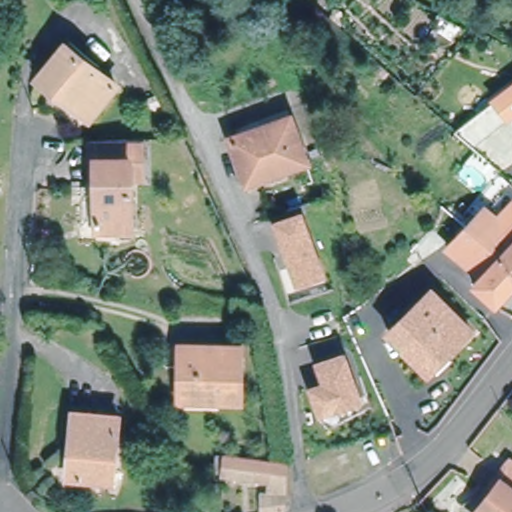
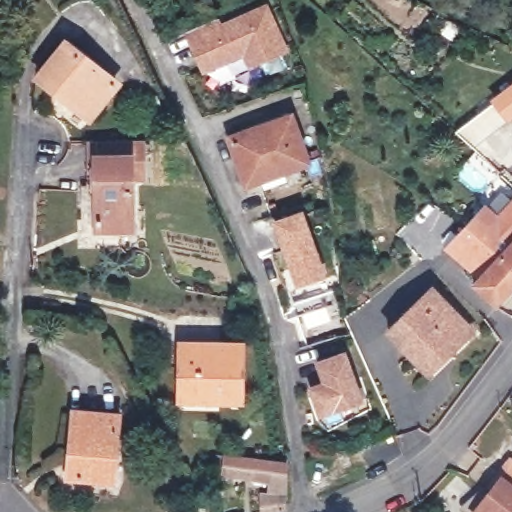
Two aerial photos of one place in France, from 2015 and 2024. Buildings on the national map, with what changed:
new [(215,21),(219,31),(265,10),(284,52),(251,68),(245,55),(214,69),(206,52),(196,57),(185,35),(215,21)]
unchanged [(40,77),(67,45),(116,84),(89,117),(40,77)]
unchanged [(492,99),(512,83),(512,110),(505,115),(492,99)]
unchanged [(239,156),(234,139),(290,120),(306,162),(254,180),(247,182),(239,156)]
unchanged [(96,222),(95,180),(89,180),(89,142),(141,139),(141,178),(131,178),(132,232),(120,231),(96,231),(96,222)]
unchanged [(308,242),(318,275),(294,283),(283,250),(275,222),(300,214),(308,242)]
unchanged [(491,311),(470,291),(477,282),(464,270),(473,261),(453,242),(471,224),(480,214),(492,225),(512,243),(512,289),(491,311)]
unchanged [(421,372),(386,335),(430,292),(470,334),(454,350),(426,377),(421,372)]
unchanged [(241,398),(181,398),(181,345),(241,345),(241,398)]
unchanged [(360,402),(321,415),(313,390),(327,385),(321,365),(345,357),(360,402)]
unchanged [(70,450),(74,412),(116,417),(112,480),(78,478),(69,477),(70,450)]
unchanged [(285,510),(275,512),(261,512),(260,493),(270,493),(271,483),(222,477),(225,456),(288,464),(287,472),(285,510)]
unchanged [(479,512),(500,483),(512,467),(512,512),(479,512)]

